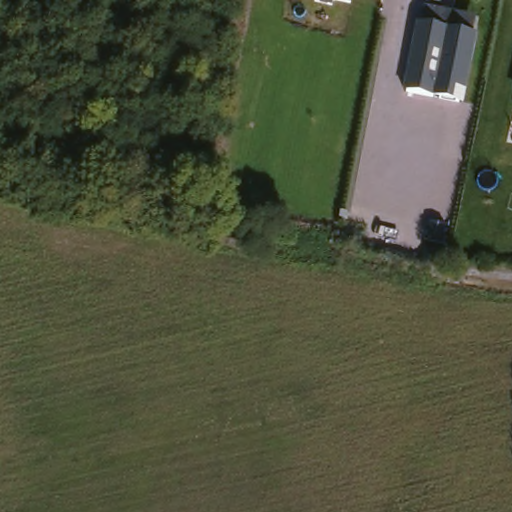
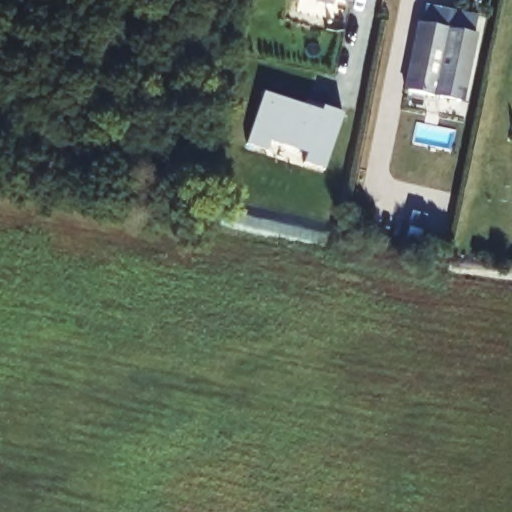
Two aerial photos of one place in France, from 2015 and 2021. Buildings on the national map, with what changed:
unchanged [(331,0),(350,0),(349,4),(331,0)]
unchanged [(418,18),(473,30),(463,100),(406,89),(418,18)]
new [(306,105),(307,100),(324,106),(344,112),(326,167),(306,161),(309,151),(272,140),(268,149),(249,141),(265,91),(306,105)]

